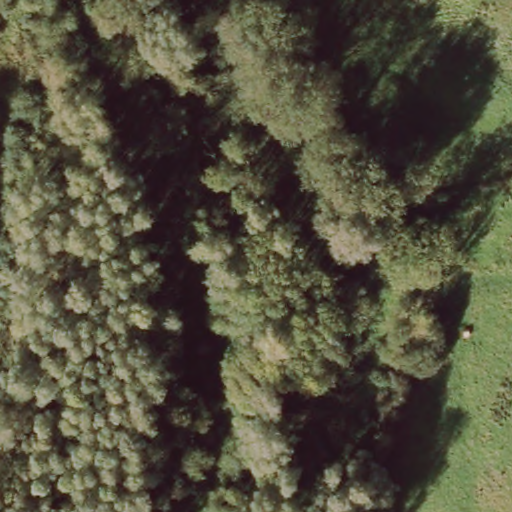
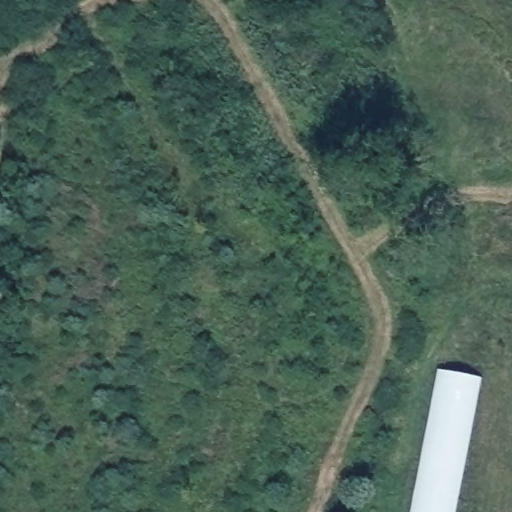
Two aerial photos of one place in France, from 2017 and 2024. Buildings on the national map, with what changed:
new [(472,377),(448,512),(411,512),(438,371),(472,377)]

